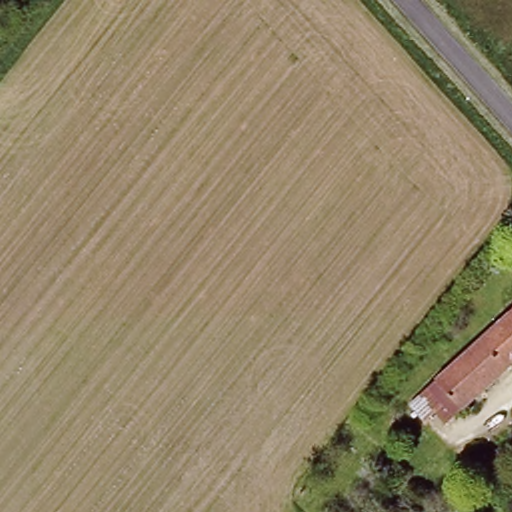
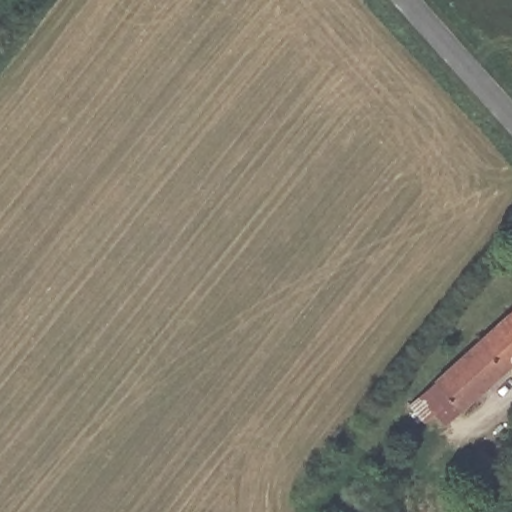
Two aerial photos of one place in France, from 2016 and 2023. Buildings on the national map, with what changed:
unchanged [(512,366),(464,411),(427,373),(512,293),(512,366)]
unchanged [(464,411),(447,427),(410,390),(427,373),(464,411)]
unchanged [(469,449),(483,464),(460,484),(446,469),(469,449)]

